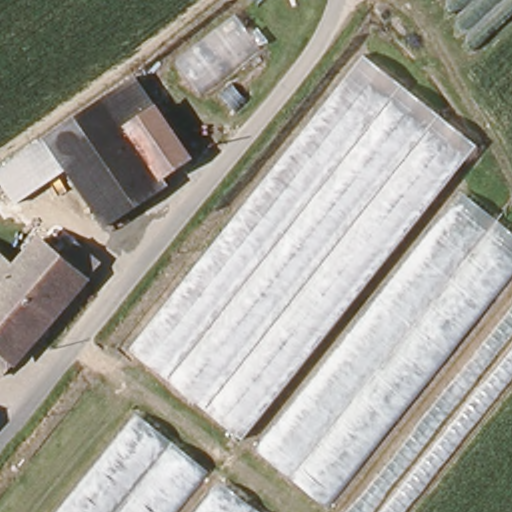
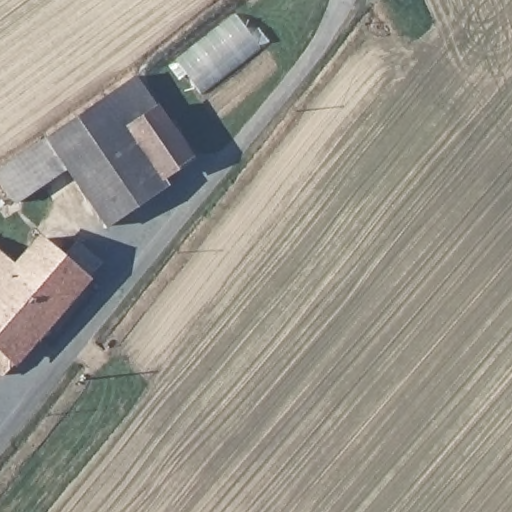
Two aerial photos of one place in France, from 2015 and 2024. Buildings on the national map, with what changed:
unchanged [(201,95),(177,65),(237,17),(258,49),(201,95)]
demolished [(478,144),(452,180),(512,229),(512,271),(327,504),(127,347),(362,52),(478,144)]
unchanged [(167,181),(172,190),(107,232),(49,142),(140,82),(193,164),(167,181)]
unchanged [(43,162),(48,167),(29,183),(24,177),(0,195),(0,178),(35,151),(43,162)]
unchanged [(5,377),(0,372),(0,258),(15,272),(42,241),(63,259),(77,242),(101,265),(5,377)]
demolished [(62,512),(140,417),(258,512),(62,512)]

